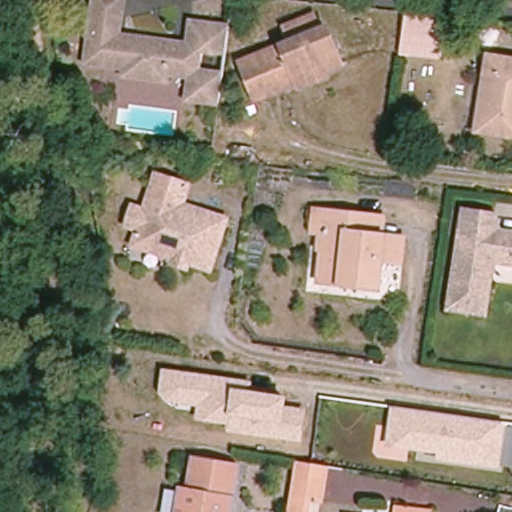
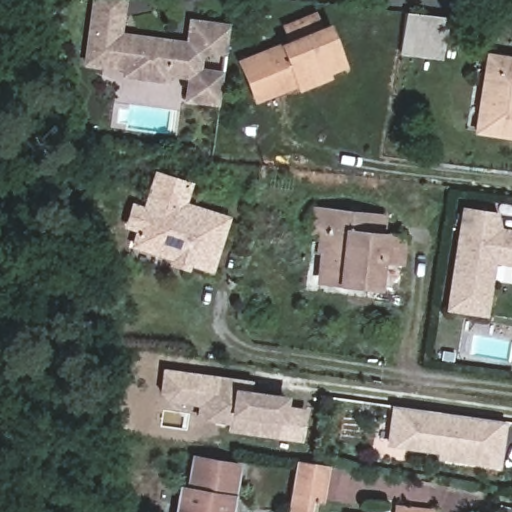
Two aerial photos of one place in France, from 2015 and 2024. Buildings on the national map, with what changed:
unchanged [(170,39),(169,42),(185,45),(189,18),(227,23),(219,77),(218,77),(216,100),(185,96),(188,74),(166,71),(165,77),(122,72),(124,52),(103,49),(101,62),(84,60),(89,19),(90,14),(92,0),(128,0),(125,18),(124,32),(170,39)]
unchanged [(443,60),(400,55),(405,10),(448,16),(443,60)]
unchanged [(338,60),(294,77),(252,94),(237,57),(323,22),(338,60)]
unchanged [(512,136),(477,131),(488,55),(512,58),(512,136)]
unchanged [(178,267),(179,261),(136,252),(140,236),(127,234),(132,212),(144,215),(152,179),(186,186),(181,207),(227,217),(215,269),(193,264),(191,270),(178,267)]
unchanged [(365,212),(364,230),(378,231),(399,233),(397,256),(376,253),(373,282),(316,276),(323,207),(365,212)]
unchanged [(452,316),(461,216),(495,219),(494,231),(505,232),(512,232),(512,264),(494,262),(493,284),(490,319),(452,316)]
unchanged [(161,368),(252,381),(251,390),(286,396),(285,407),(305,408),(301,442),(226,432),(227,425),(194,419),(196,406),(165,402),(159,392),(161,368)]
unchanged [(386,446),(390,407),(506,422),(499,468),(435,459),(436,453),(386,446)]
unchanged [(328,461),(322,497),(312,495),(309,512),(288,508),(298,456),(328,461)]
unchanged [(231,512),(178,512),(182,486),(190,487),(195,459),(239,467),(231,512)]
unchanged [(422,512),(393,512),(393,508),(422,512)]

